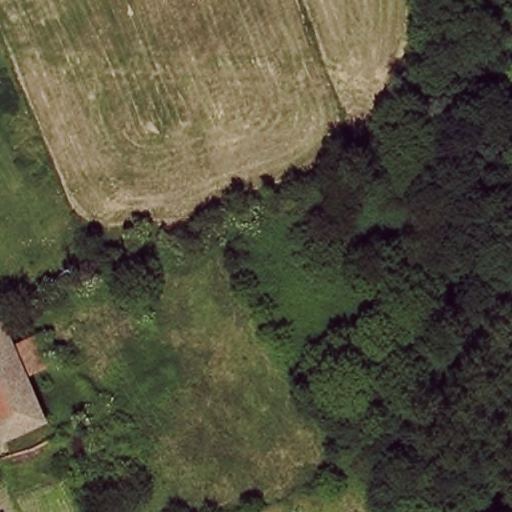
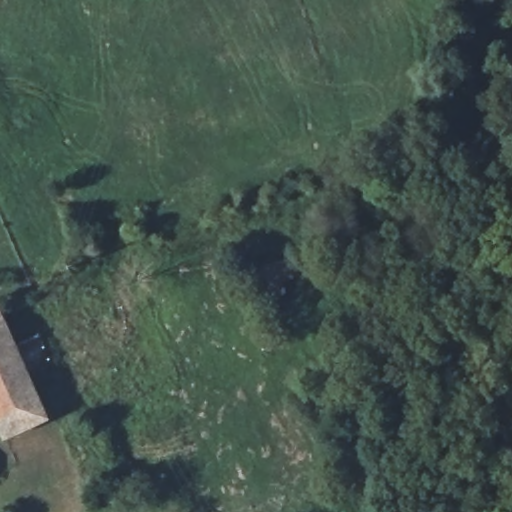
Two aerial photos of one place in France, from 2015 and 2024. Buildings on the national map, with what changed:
unchanged [(14,344),(39,333),(51,359),(27,371),(28,373),(0,386),(0,312),(14,344)]
unchanged [(28,373),(49,417),(7,438),(0,436),(0,386),(28,373)]

